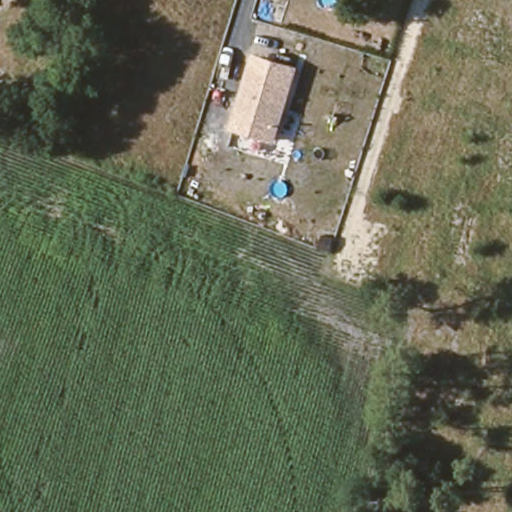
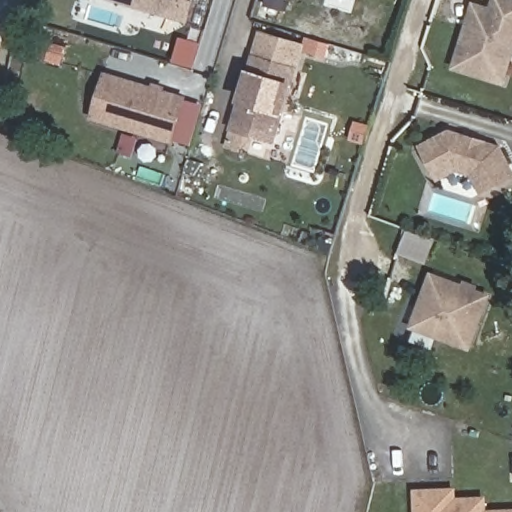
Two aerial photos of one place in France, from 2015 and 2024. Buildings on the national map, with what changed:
new [(117,0),(196,0),(190,21),(117,0)]
new [(512,0),(512,63),(506,85),(452,68),(472,1),(490,5),(492,0),(512,0)]
new [(2,24),(0,30),(0,23),(2,24)]
new [(252,53),(258,30),(308,43),(302,67),(252,53)]
unchanged [(302,67),(278,146),(232,132),(252,53),(302,67)]
new [(188,95),(174,142),(91,118),(104,71),(151,85),(152,82),(166,85),(166,89),(188,95)]
new [(451,129),(502,144),(512,164),(512,179),(482,195),(472,173),(457,170),(439,181),(420,145),(451,129)]
new [(492,293),(471,350),(410,328),(430,272),(463,283),(464,280),(479,285),(478,289),(492,293)]
new [(484,499),(485,512),(418,512),(417,492),(454,490),(455,500),(484,499)]

